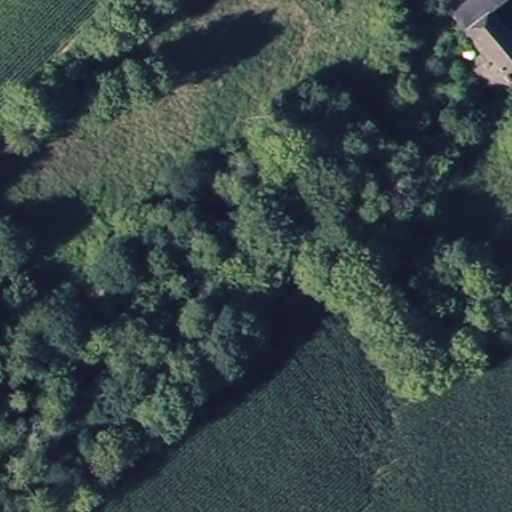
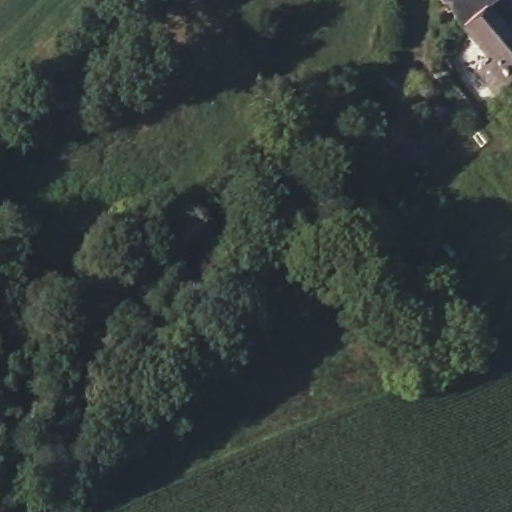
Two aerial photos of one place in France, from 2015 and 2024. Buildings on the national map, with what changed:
unchanged [(512,34),(512,84),(502,91),(483,67),(488,63),(440,0),(502,0),(492,8),(512,34)]

